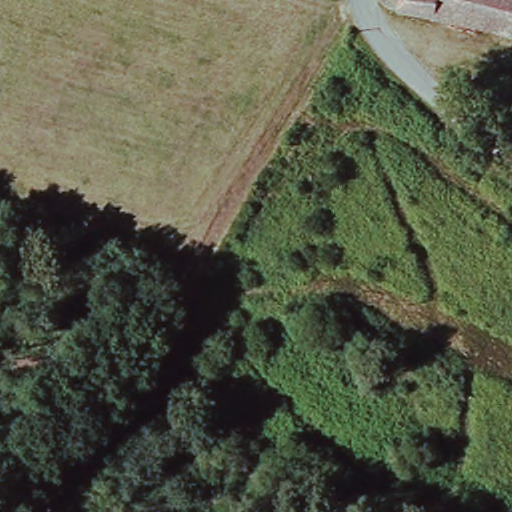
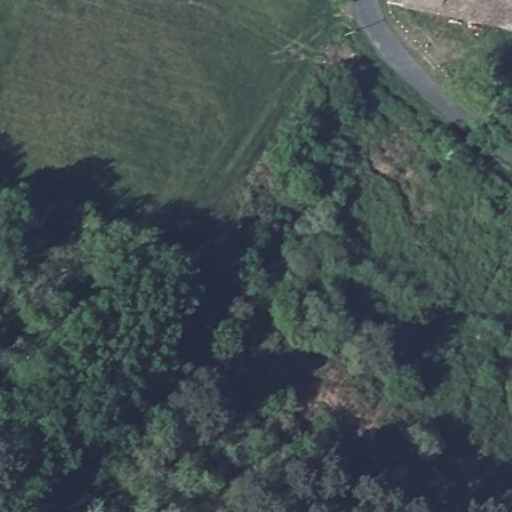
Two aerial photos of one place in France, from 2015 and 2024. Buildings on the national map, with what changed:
unchanged [(387,0),(512,0),(512,35),(386,4),(387,0)]

